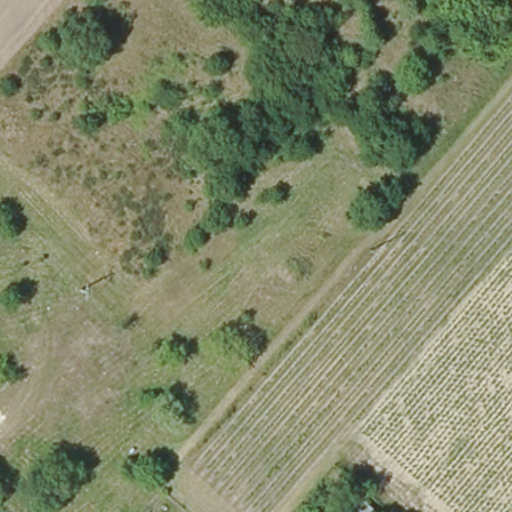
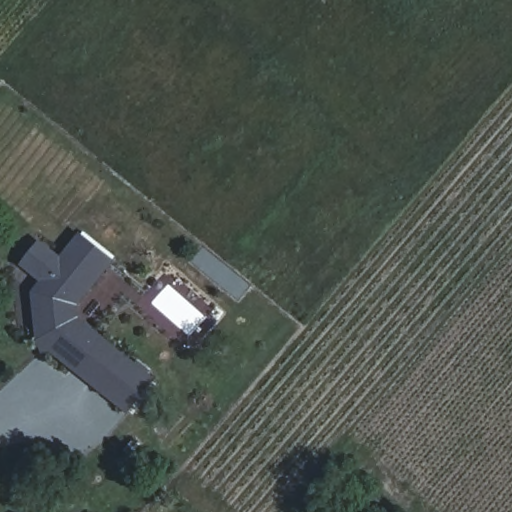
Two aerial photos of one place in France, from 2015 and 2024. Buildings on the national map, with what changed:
new [(127,417),(51,355),(46,362),(37,343),(31,295),(40,284),(19,268),(39,242),(60,258),(78,235),(113,263),(77,308),(78,319),(155,381),(127,417)]
demolished [(69,305),(123,355),(105,378),(48,332),(69,305)]

